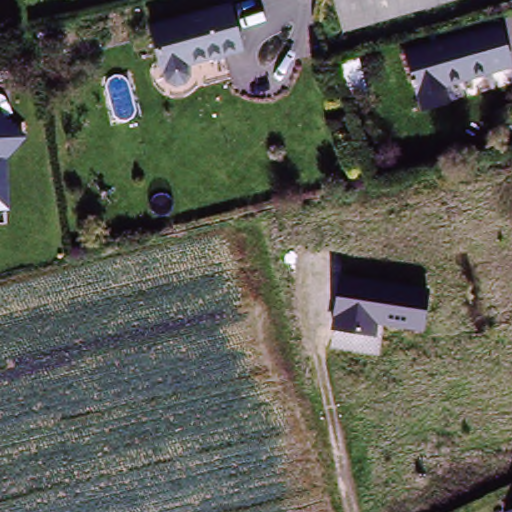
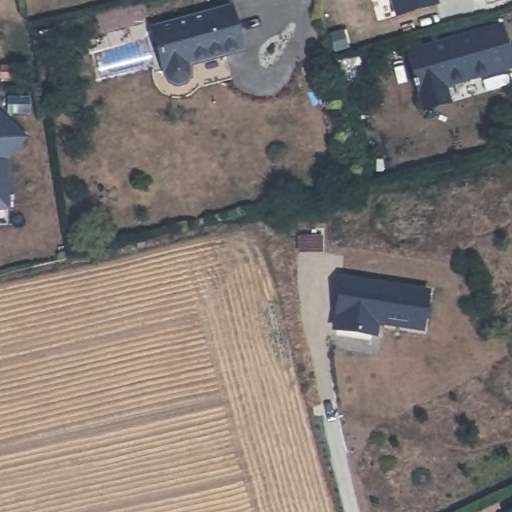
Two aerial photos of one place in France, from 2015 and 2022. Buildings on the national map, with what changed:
unchanged [(336,0),(451,0),(345,30),(336,0)]
unchanged [(241,49),(189,64),(189,76),(185,82),(177,84),(170,81),(165,70),(153,29),(230,8),(241,49)]
unchanged [(424,114),(422,109),(407,57),(499,31),(511,71),(444,91),(448,101),(449,106),(424,114)]
unchanged [(26,136),(9,157),(11,210),(0,210),(0,114),(26,136)]
unchanged [(429,290),(424,334),(380,328),(377,338),(336,330),(341,275),(429,290)]

